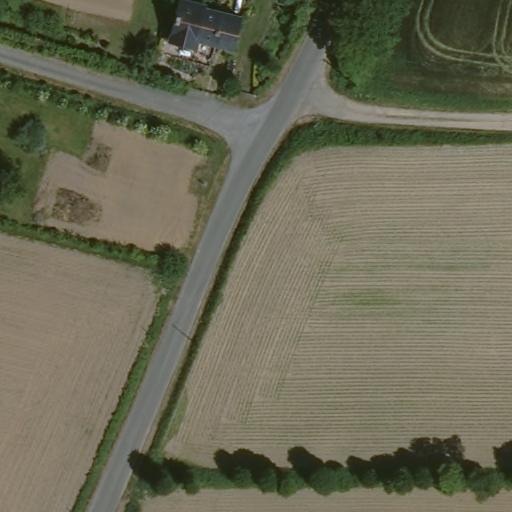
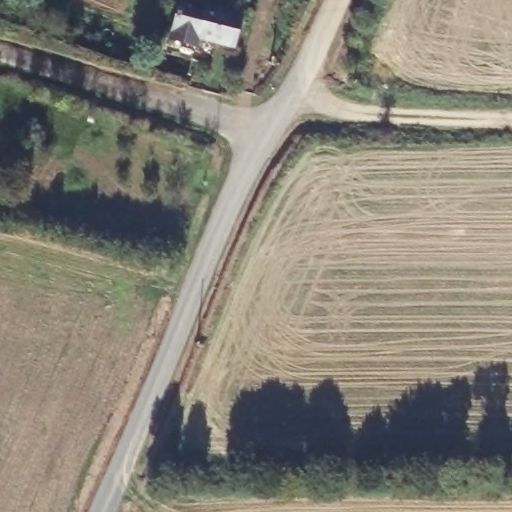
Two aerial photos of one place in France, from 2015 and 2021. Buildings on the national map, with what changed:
unchanged [(179,1),(204,6),(203,11),(238,22),(230,55),(212,50),(206,70),(188,65),(191,55),(167,47),(179,1)]

